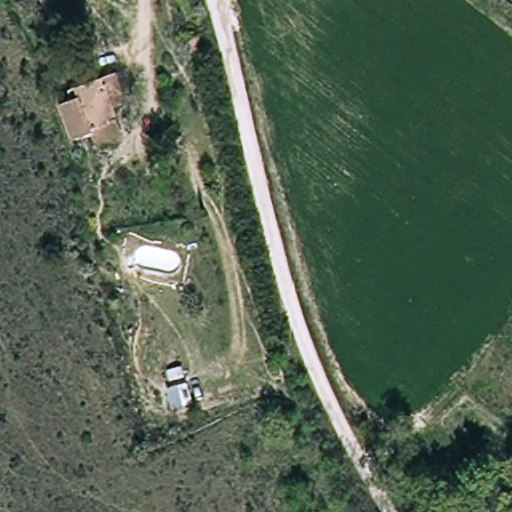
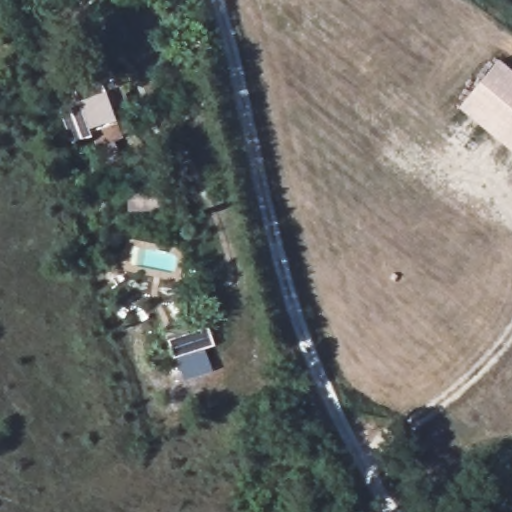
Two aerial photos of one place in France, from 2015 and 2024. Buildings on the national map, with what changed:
new [(512,68),(512,151),(459,107),(500,58),(512,68)]
unchanged [(98,134),(83,139),(73,104),(86,99),(83,90),(115,80),(127,122),(102,130),(98,134)]

